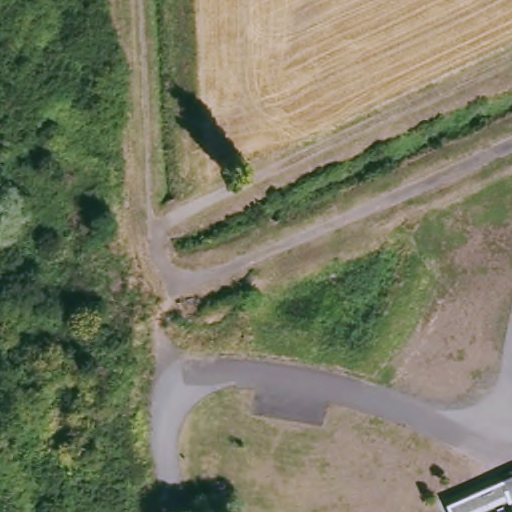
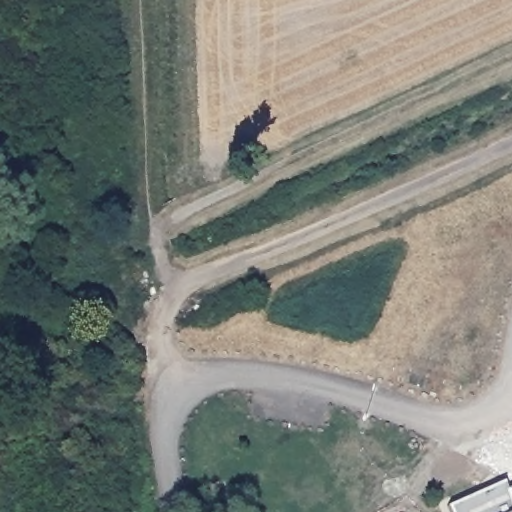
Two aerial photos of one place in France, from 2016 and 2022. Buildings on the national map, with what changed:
unchanged [(496,512),(510,506),(502,480),(512,475),(512,512),(496,512)]

